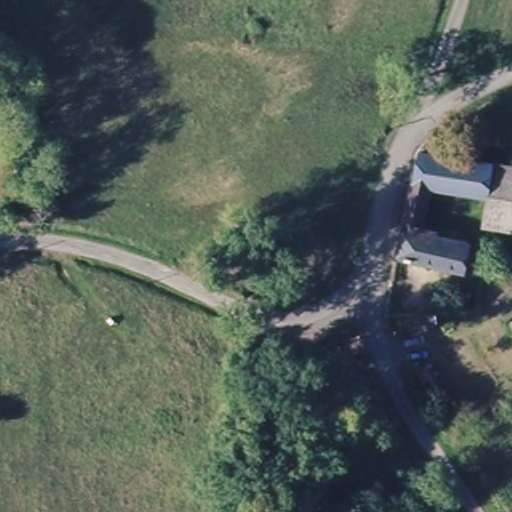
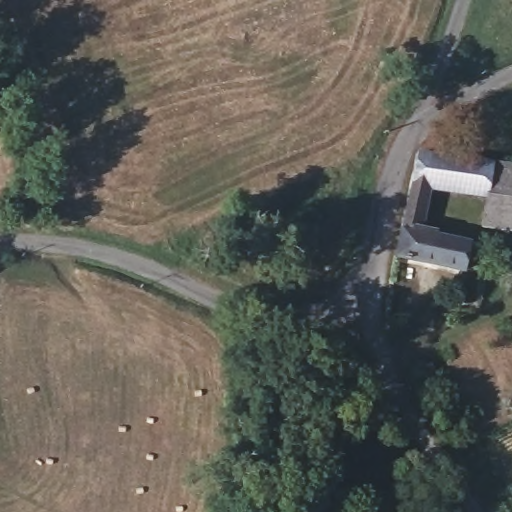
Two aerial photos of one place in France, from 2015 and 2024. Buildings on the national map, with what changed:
unchanged [(512,235),(483,230),(486,200),(433,192),(426,240),(473,247),(468,275),(402,263),(413,198),(421,157),(512,170),(512,235)]
unchanged [(428,356),(433,370),(412,380),(405,365),(428,356)]

